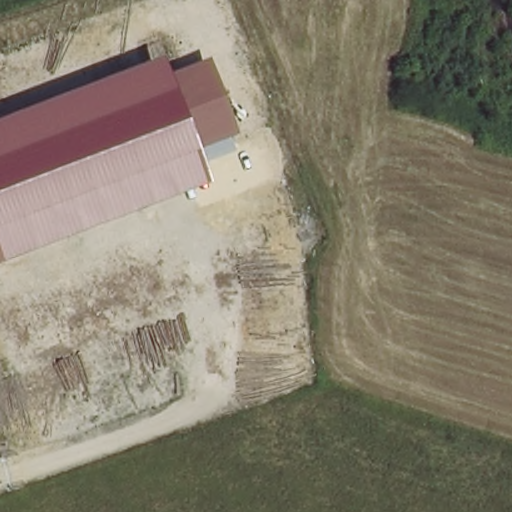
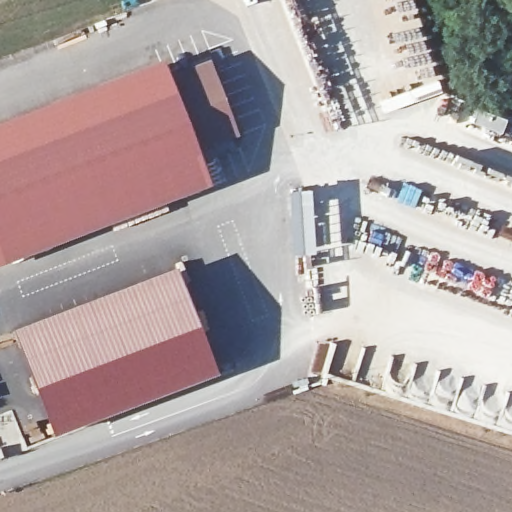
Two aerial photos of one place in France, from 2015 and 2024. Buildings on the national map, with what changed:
unchanged [(161,57),(168,75),(209,58),(237,135),(198,150),(209,184),(0,264),(0,117),(161,57)]
new [(177,261),(217,371),(51,434),(10,325),(177,261)]

